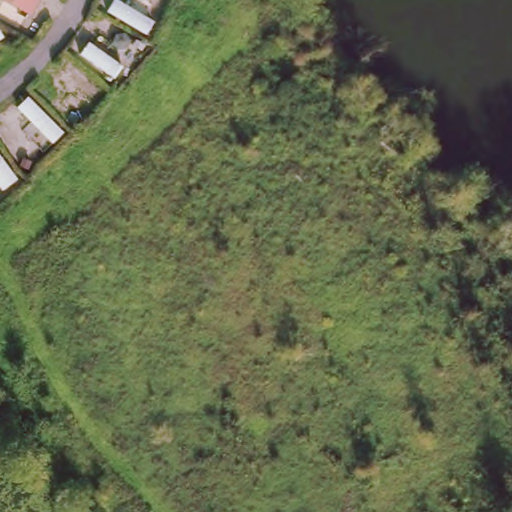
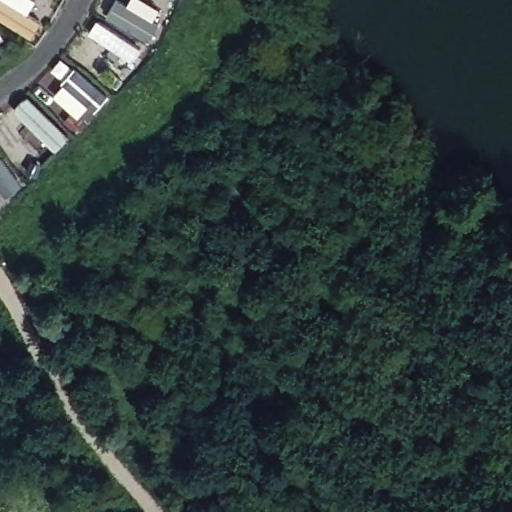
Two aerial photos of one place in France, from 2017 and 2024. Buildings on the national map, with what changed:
unchanged [(33,9),(0,1),(0,0),(36,0),(33,9)]
unchanged [(167,26),(155,47),(104,15),(116,0),(126,0),(167,26)]
unchanged [(123,69),(112,85),(77,49),(89,38),(123,69)]
unchanged [(67,61),(105,96),(91,110),(56,79),(67,61)]
unchanged [(44,145),(17,164),(0,142),(0,112),(24,92),(50,120),(34,131),(44,145)]
unchanged [(0,166),(0,154),(5,161),(0,166)]

